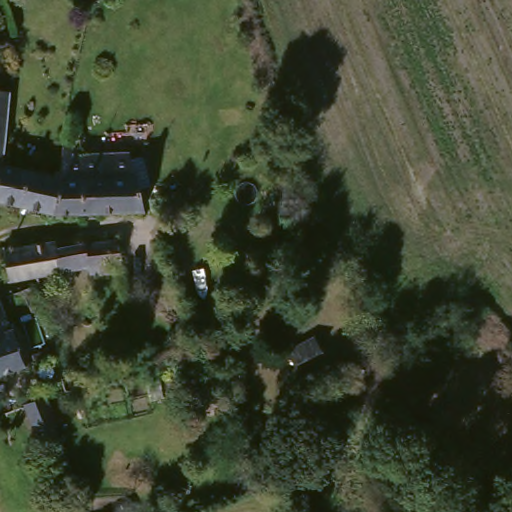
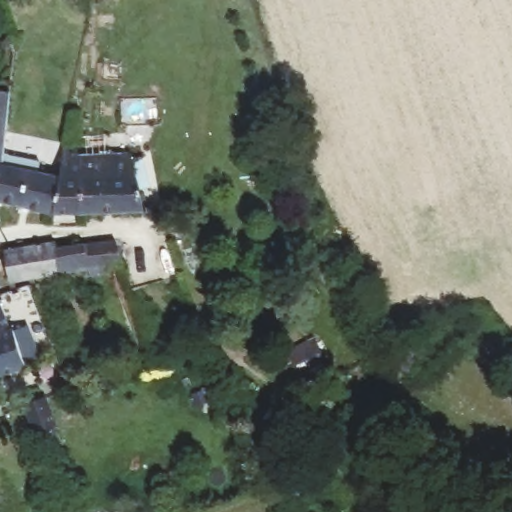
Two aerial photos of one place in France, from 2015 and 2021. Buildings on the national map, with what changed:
unchanged [(11,45),(10,49),(0,51),(0,38),(8,35),(11,45)]
unchanged [(5,147),(2,162),(0,177),(0,89),(10,91),(5,147)]
unchanged [(0,200),(0,177),(2,162),(60,175),(65,146),(79,146),(81,152),(133,151),(134,157),(145,155),(153,187),(144,191),(147,207),(82,211),(53,212),(0,200)]
unchanged [(83,237),(83,241),(114,236),(120,258),(107,260),(107,270),(88,273),(86,263),(59,268),(54,242),(83,237)]
unchanged [(53,237),(54,242),(59,268),(29,272),(8,276),(3,246),(53,237)]
unchanged [(9,329),(23,364),(16,367),(0,373),(0,307),(9,329)]
unchanged [(314,339),(323,357),(302,367),(293,350),(314,339)]

